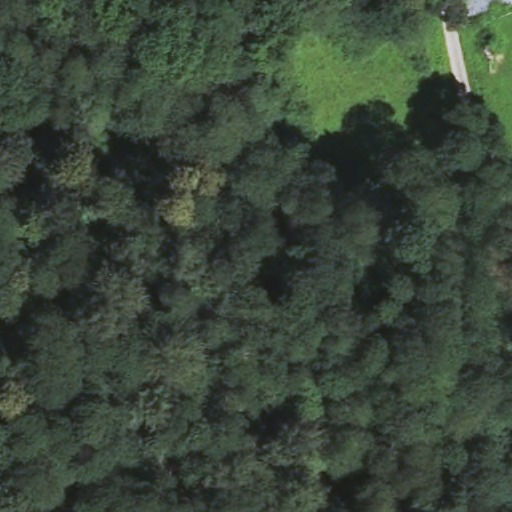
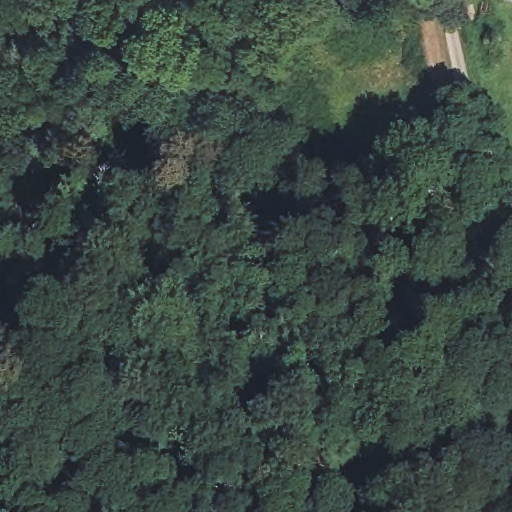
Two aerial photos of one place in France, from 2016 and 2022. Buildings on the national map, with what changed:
[]

